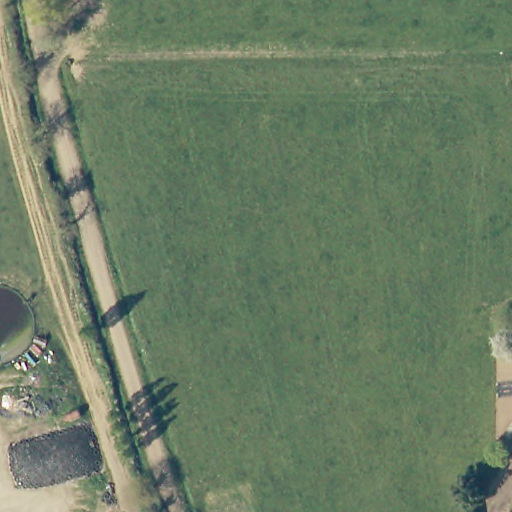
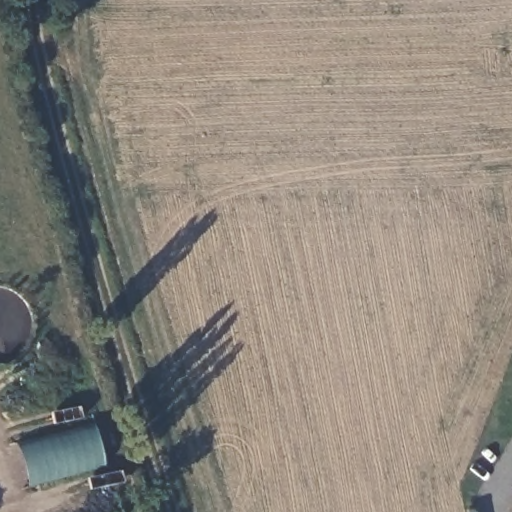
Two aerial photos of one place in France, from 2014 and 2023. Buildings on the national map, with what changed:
new [(13,443),(93,420),(106,468),(28,489),(13,443)]

